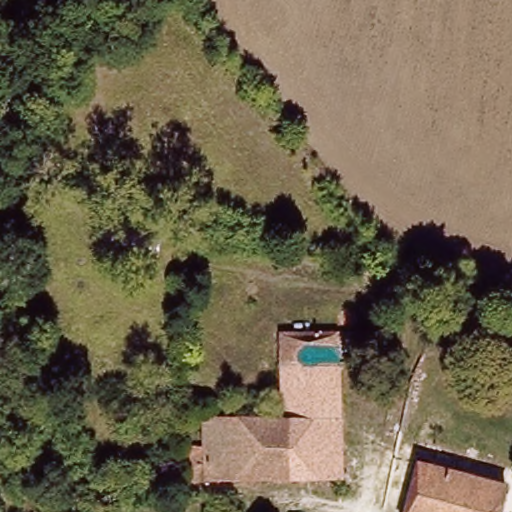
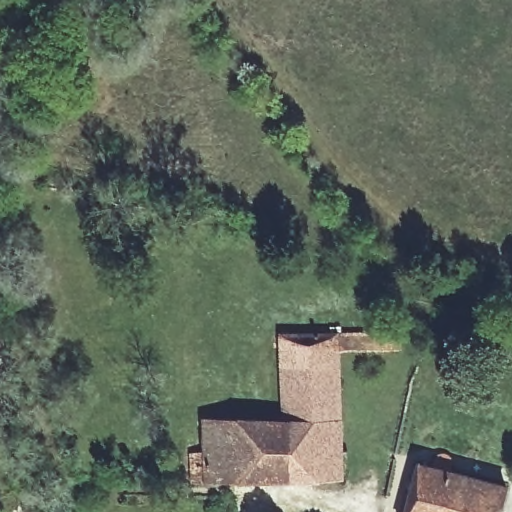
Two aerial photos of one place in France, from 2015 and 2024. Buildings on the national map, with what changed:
unchanged [(405,354),(337,358),(338,482),(245,483),(197,483),(199,421),(281,420),(280,336),(405,336),(405,354)]
unchanged [(500,487),(495,512),(405,512),(412,468),(500,487)]

